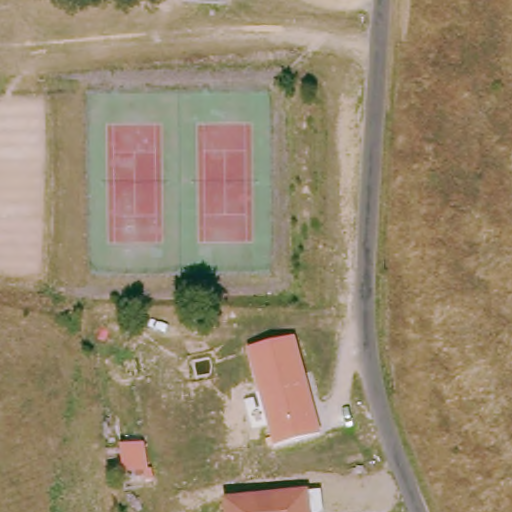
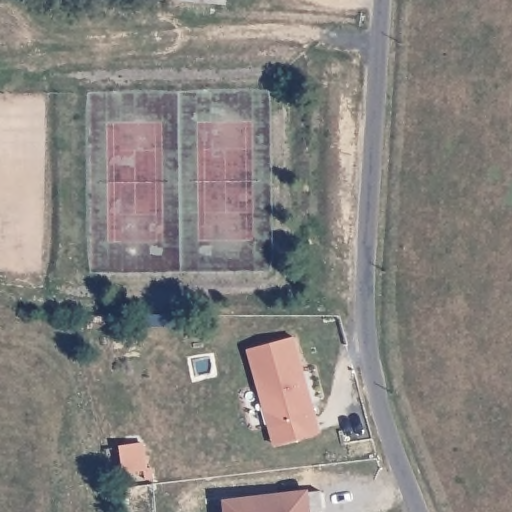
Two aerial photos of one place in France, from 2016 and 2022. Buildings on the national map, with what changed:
unchanged [(224,3),(200,0),(224,0),(224,3)]
unchanged [(296,338),(322,435),(273,448),(246,350),(296,338)]
unchanged [(146,444),(149,470),(153,470),(153,481),(125,484),(120,446),(146,444)]
unchanged [(309,495),(320,493),(321,512),(225,512),(224,501),(309,491),(309,495)]

